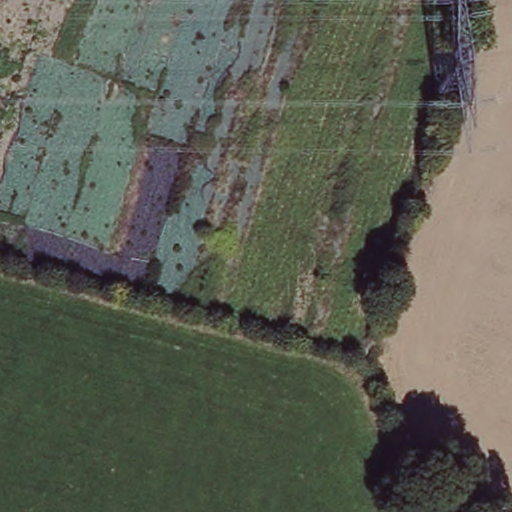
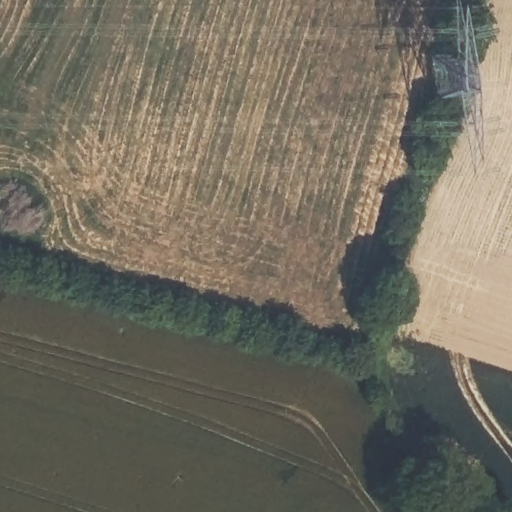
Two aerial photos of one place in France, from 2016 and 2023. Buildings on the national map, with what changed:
[]

